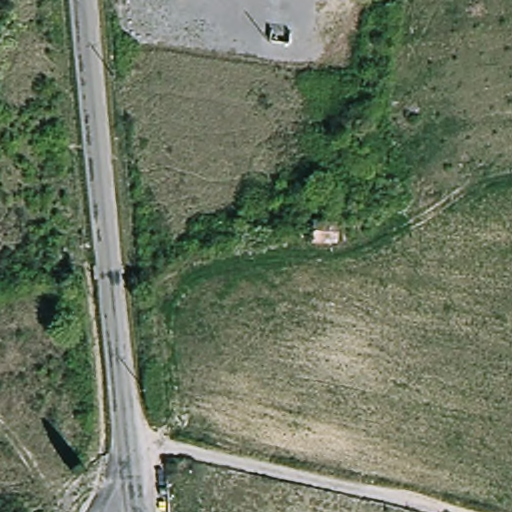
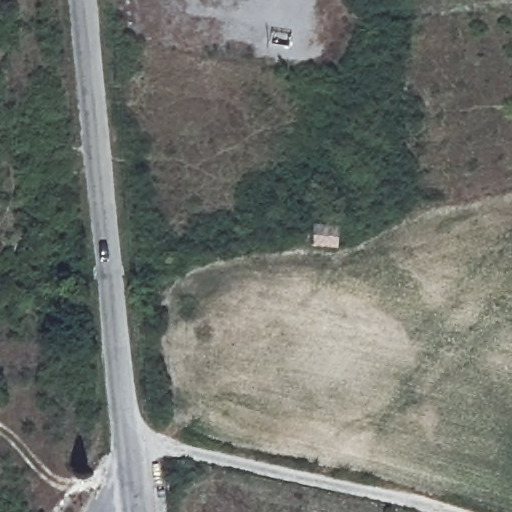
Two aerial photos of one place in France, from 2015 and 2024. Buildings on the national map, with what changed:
unchanged [(340,245),(316,242),(318,224),(342,227),(340,245)]

